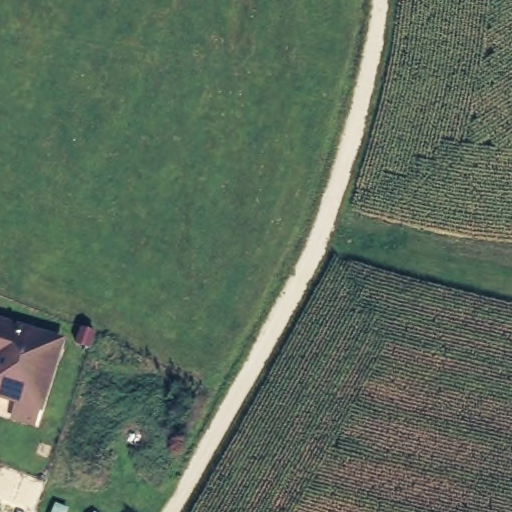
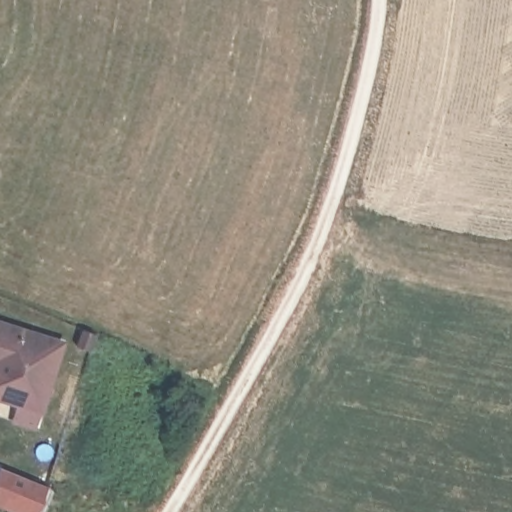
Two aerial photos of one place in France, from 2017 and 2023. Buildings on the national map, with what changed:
unchanged [(42,412),(0,397),(0,318),(64,339),(42,412)]
new [(0,466),(47,485),(35,512),(15,512),(0,506),(0,466)]

